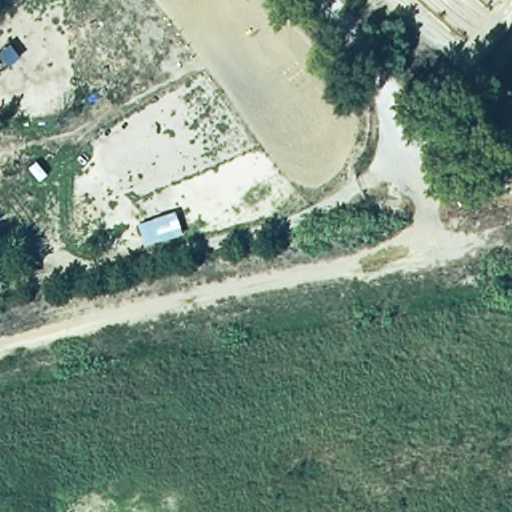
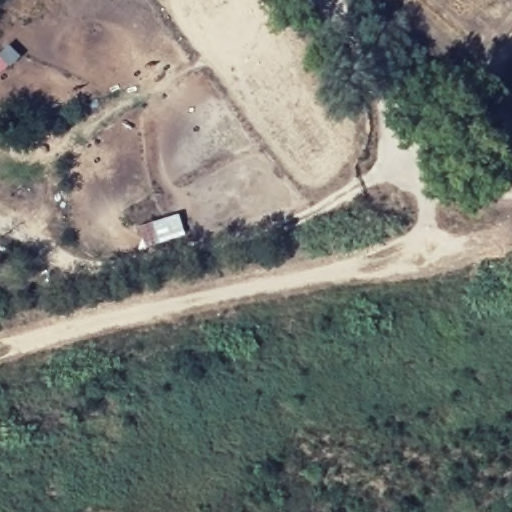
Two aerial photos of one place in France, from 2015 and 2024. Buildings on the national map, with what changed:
unchanged [(173,241),(136,249),(131,226),(168,213),(173,241)]

